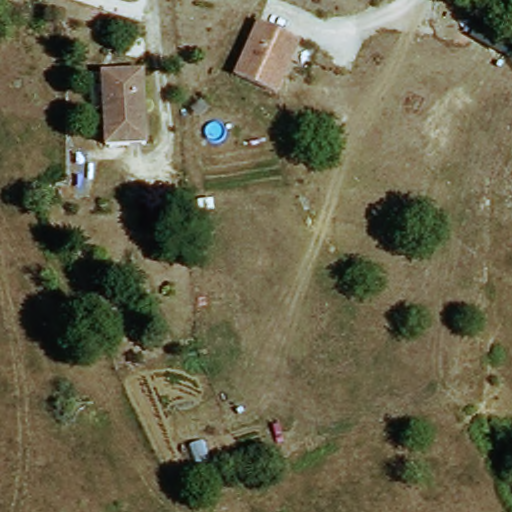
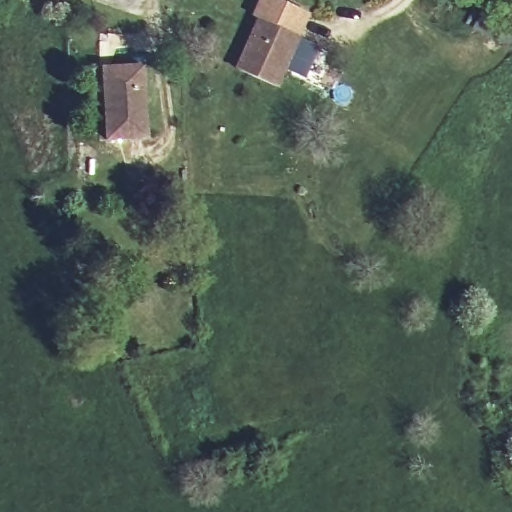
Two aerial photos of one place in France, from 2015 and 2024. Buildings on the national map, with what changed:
new [(262,14),(260,19),(253,15),(261,0),(278,0),(311,16),(302,33),(262,14)]
unchanged [(277,83),(238,66),(262,14),(302,33),(293,51),(286,65),(277,83)]
unchanged [(142,73),(142,142),(102,142),(101,73),(142,73)]

